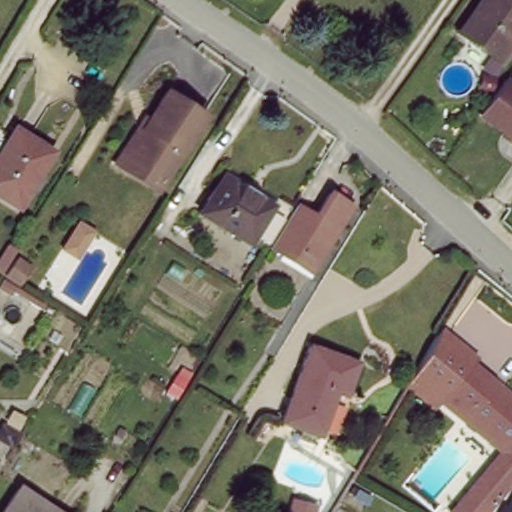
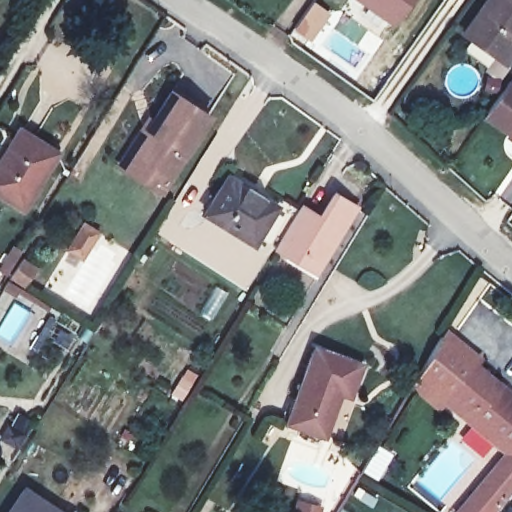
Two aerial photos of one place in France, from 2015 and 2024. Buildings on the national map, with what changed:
new [(357,0),(409,0),(392,25),(357,0)]
unchanged [(496,53),(467,32),(490,0),(512,0),(512,53),(507,61),(496,53)]
unchanged [(492,112),(512,84),(512,126),(492,112)]
unchanged [(125,163),(133,151),(172,89),(210,114),(171,175),(162,187),(125,163)]
unchanged [(0,191),(0,161),(15,136),(20,129),(42,142),(57,151),(23,205),(0,191)]
unchanged [(278,202),(255,239),(207,210),(230,172),(278,202)]
unchanged [(299,263),(275,249),(302,207),(316,216),(320,219),(335,195),(357,209),(323,262),(322,262),(315,273),(299,263)]
unchanged [(483,356),(478,362),(512,389),(512,493),(496,512),(454,512),(502,454),(443,404),(439,411),(410,389),(448,328),(483,356)]
unchanged [(289,418),(317,345),(362,361),(352,392),(342,388),(327,432),(289,418)]
unchanged [(25,487),(65,512),(9,512),(25,487)]
unchanged [(320,505),(319,512),(295,512),(298,499),(320,505)]

